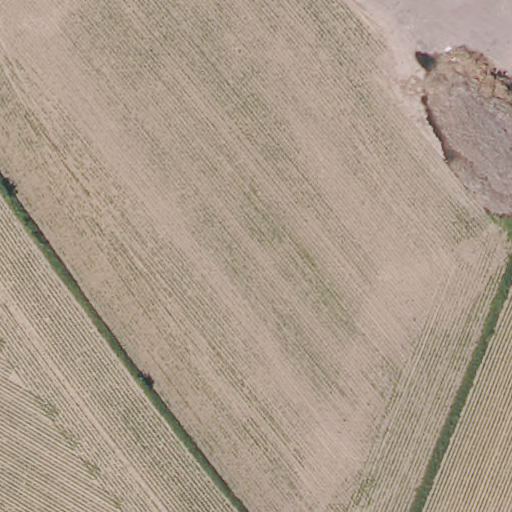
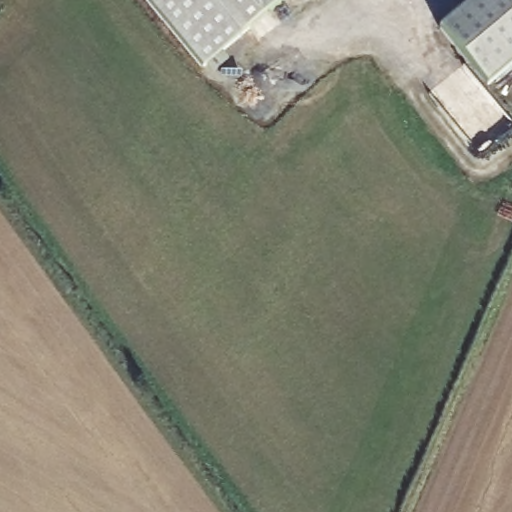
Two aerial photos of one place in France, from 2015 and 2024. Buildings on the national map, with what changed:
new [(197,64),(144,0),(274,0),(197,64)]
new [(487,85),(440,27),(473,0),(512,0),(512,65),(487,85)]

